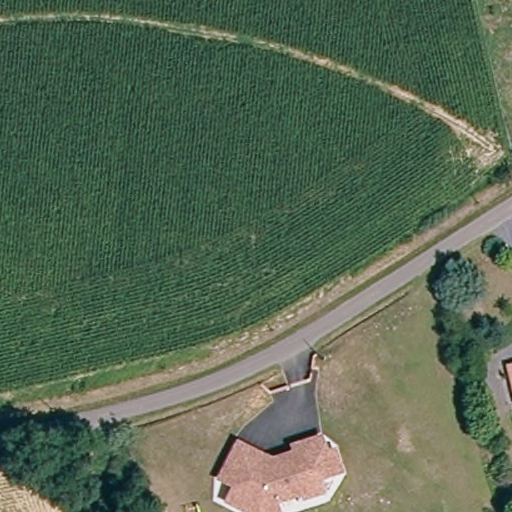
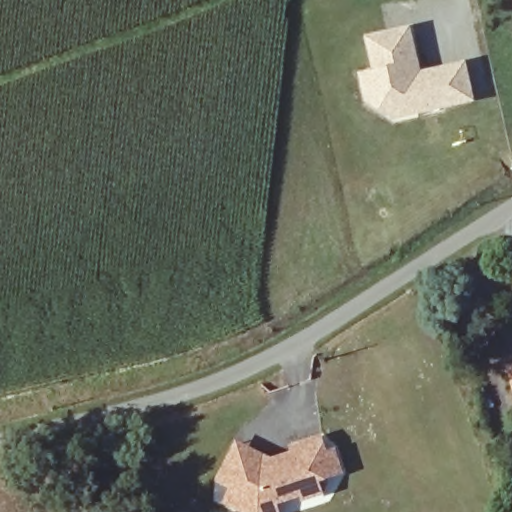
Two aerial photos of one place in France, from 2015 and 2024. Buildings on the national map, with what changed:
new [(379,71),(371,38),(411,29),(419,65),(421,75),(434,71),(442,106),(419,112),(398,117),(370,100),(364,75),(376,72),(379,71)]
new [(467,64),(475,99),(442,106),(434,71),(467,64)]
unchanged [(269,458),(291,453),(290,443),(324,437),(328,452),(337,450),(343,474),(325,479),(326,496),(282,505),(283,512),(243,512),(225,502),(229,489),(218,478),(235,440),(269,458)]

